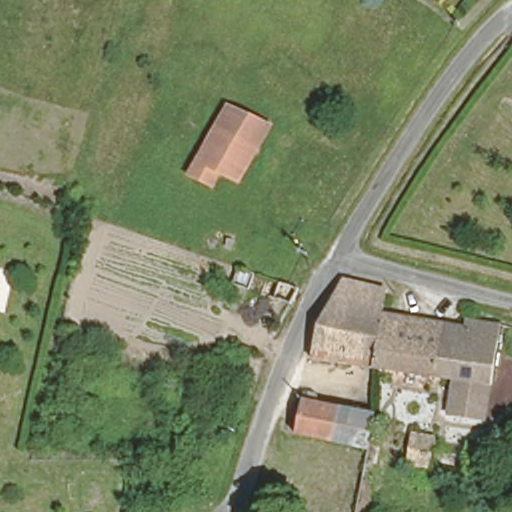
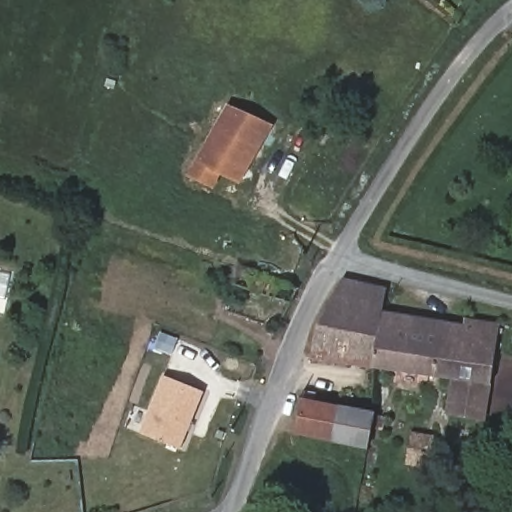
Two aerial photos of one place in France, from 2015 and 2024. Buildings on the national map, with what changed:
unchanged [(241,185),(221,175),(214,191),(192,178),(229,107),(269,129),(241,185)]
unchanged [(288,305),(226,285),(232,265),(298,287),(288,305)]
unchanged [(375,361),(372,371),(372,372),(308,363),(312,336),(333,298),(343,280),(388,289),(385,305),(383,315),(375,361)]
unchanged [(372,371),(375,361),(383,315),(466,331),(467,323),(501,328),(486,425),(450,421),(456,384),(372,372),(372,371)]
new [(163,377),(203,393),(180,450),(140,434),(163,377)]
unchanged [(297,400),(365,414),(380,417),(378,430),(362,427),(358,447),(289,433),(297,400)]
unchanged [(405,462),(410,432),(465,441),(460,470),(405,462)]

